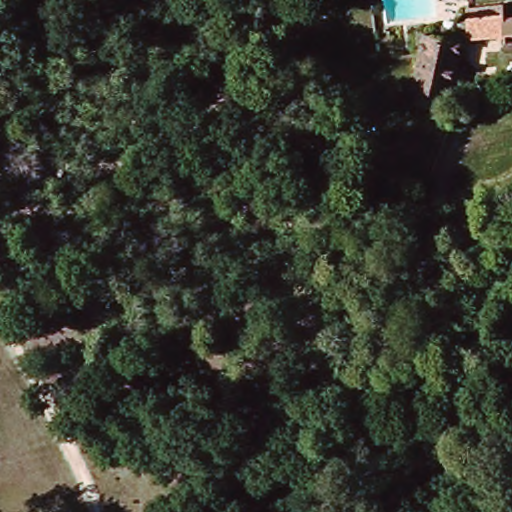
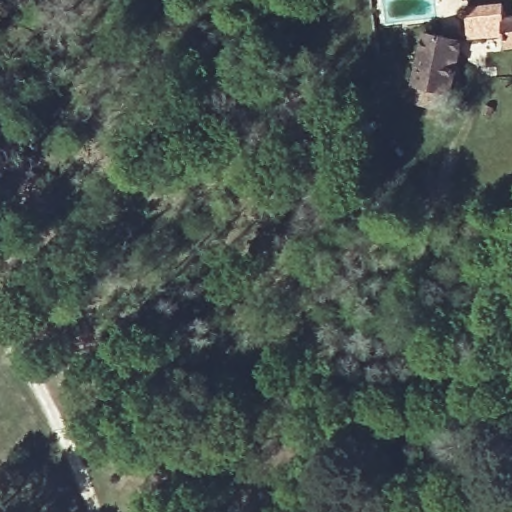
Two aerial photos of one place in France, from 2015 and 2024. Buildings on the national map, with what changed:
unchanged [(505,36),(467,37),(466,6),(502,5),(503,17),(512,15),(512,46),(506,47),(505,36)]
unchanged [(420,86),(413,86),(422,30),(461,36),(452,92),(450,106),(417,101),(420,86)]
unchanged [(22,133),(26,159),(0,160),(0,134),(22,133)]

